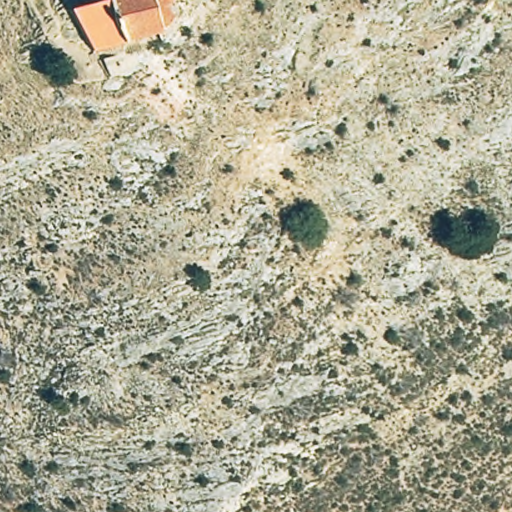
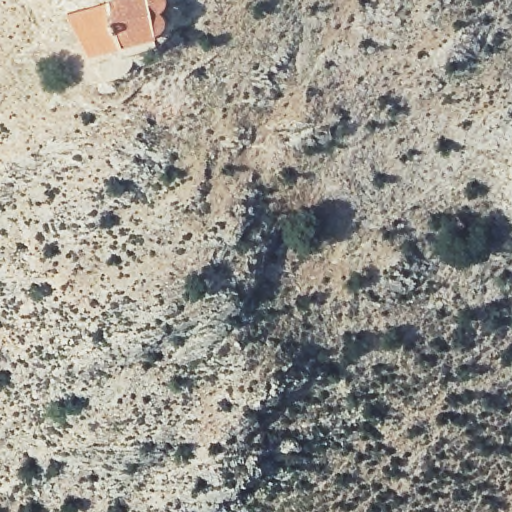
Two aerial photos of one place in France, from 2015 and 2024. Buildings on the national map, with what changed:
unchanged [(91,56),(74,7),(96,0),(161,0),(171,31),(128,46),(91,56)]

